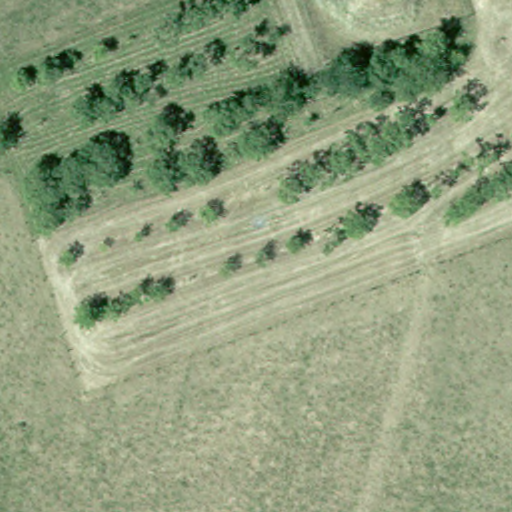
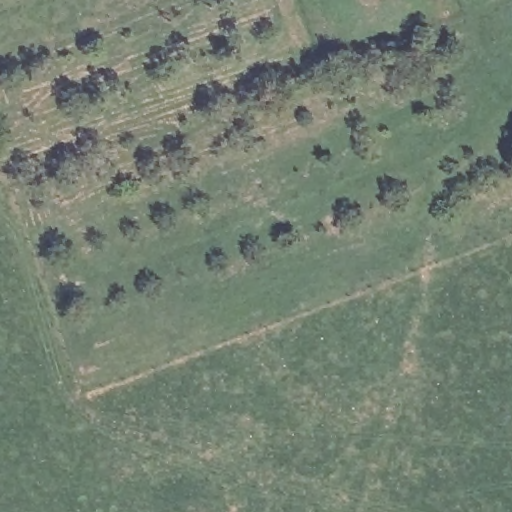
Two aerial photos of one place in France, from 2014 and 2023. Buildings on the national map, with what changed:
[]

